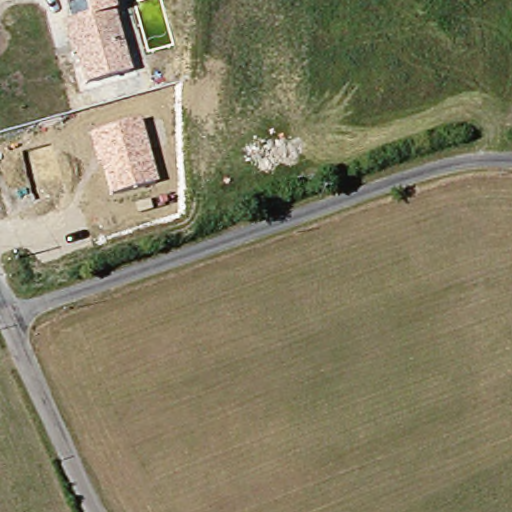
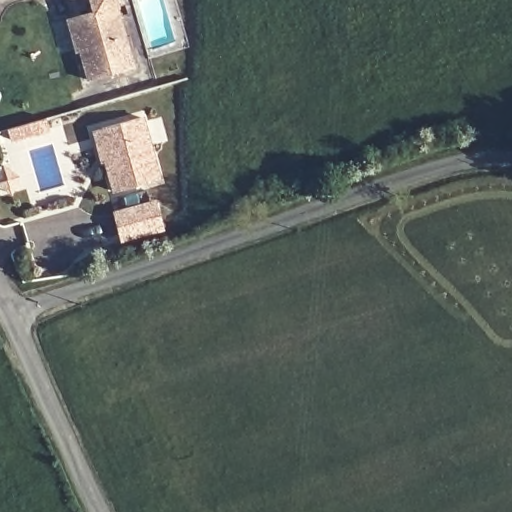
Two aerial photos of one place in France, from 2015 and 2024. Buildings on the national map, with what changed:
unchanged [(134,61),(89,73),(80,41),(83,41),(75,10),(94,3),(93,0),(116,0),(134,61)]
unchanged [(107,158),(112,157),(106,138),(103,126),(142,115),(143,122),(159,178),(116,190),(107,158)]
new [(156,200),(164,231),(120,243),(112,211),(156,200)]

